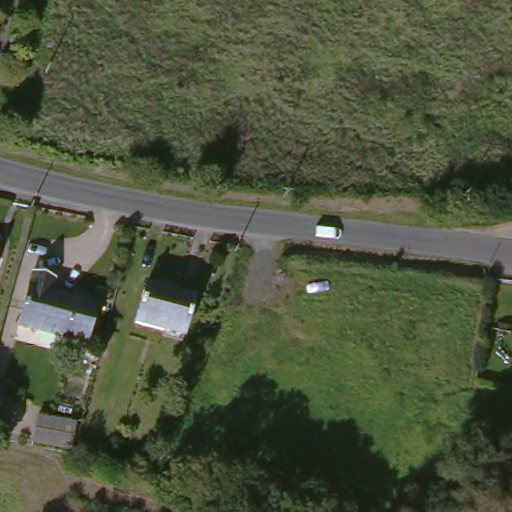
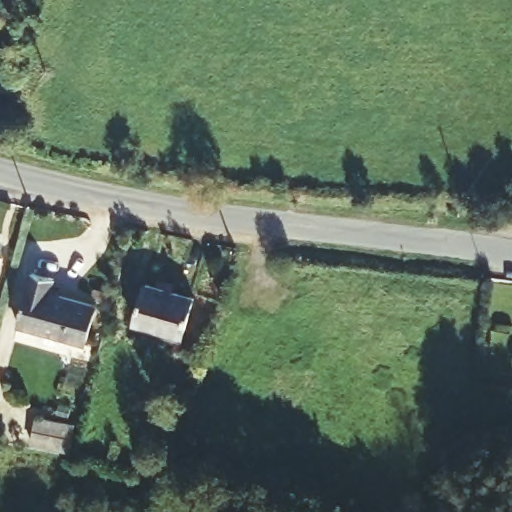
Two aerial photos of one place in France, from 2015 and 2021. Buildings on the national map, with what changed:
unchanged [(92,313),(79,353),(14,331),(32,277),(54,284),(49,299),(92,313)]
unchanged [(185,304),(172,342),(126,326),(139,288),(185,304)]
unchanged [(0,457),(0,439),(4,439),(0,457)]

